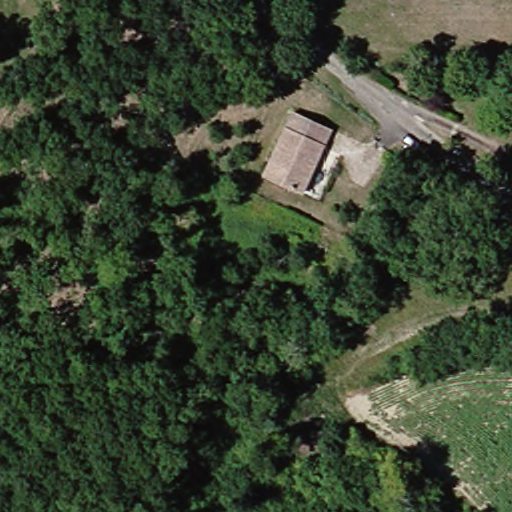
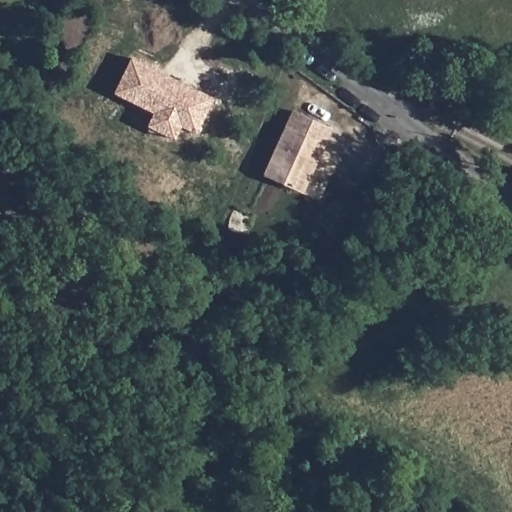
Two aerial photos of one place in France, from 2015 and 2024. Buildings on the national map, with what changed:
new [(197,135),(182,127),(176,140),(147,125),(153,113),(113,93),(131,55),(214,96),(197,135)]
unchanged [(342,131),(312,189),(276,171),(305,111),(342,131)]

